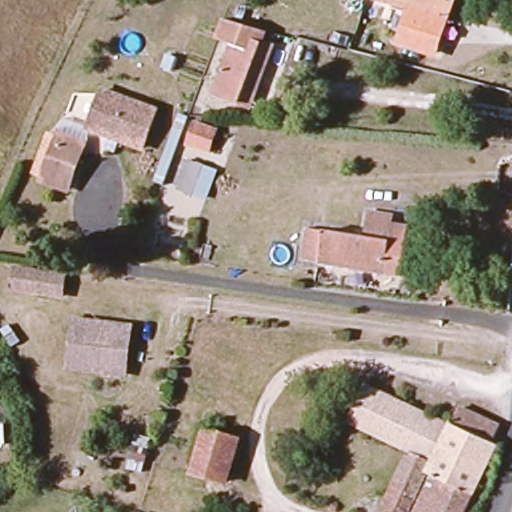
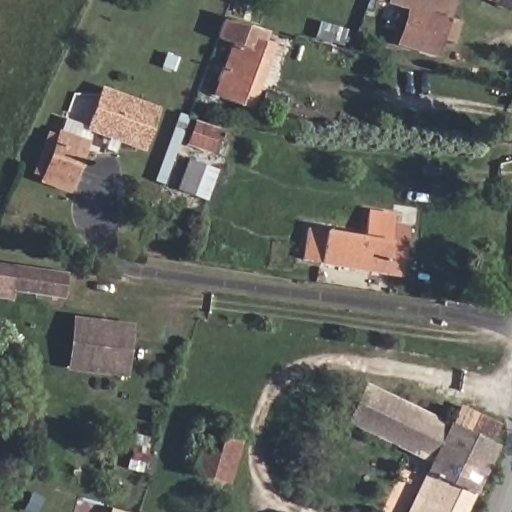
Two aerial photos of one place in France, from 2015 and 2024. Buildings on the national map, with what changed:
unchanged [(441,57),(406,48),(415,16),(392,9),(394,1),(394,0),(439,0),(454,4),(451,16),(441,57)]
unchanged [(217,96),(220,90),(225,80),(231,84),(243,59),(228,51),(237,29),(278,40),(249,110),(245,110),(217,96)]
unchanged [(142,151),(86,134),(97,95),(154,113),(142,151)]
unchanged [(213,127),(206,147),(185,140),(194,119),(213,127)]
unchanged [(40,185),(49,155),(54,140),(78,147),(74,162),(64,195),(40,185)]
unchanged [(177,195),(187,165),(215,175),(206,205),(177,195)]
unchanged [(367,217),(391,220),(390,225),(406,227),(404,242),(400,278),(301,265),(305,232),(363,241),(367,217)]
unchanged [(58,295),(8,288),(11,268),(62,275),(58,295)]
unchanged [(125,377),(68,377),(70,326),(128,326),(127,345),(127,362),(125,377)]
unchanged [(458,407),(494,425),(489,445),(492,448),(461,512),(407,512),(421,484),(405,474),(409,467),(425,473),(430,465),(363,431),(382,394),(448,425),(458,407)]
unchanged [(208,435),(237,445),(224,485),(194,474),(208,435)]
unchanged [(149,512),(141,512),(142,510),(149,512)]

